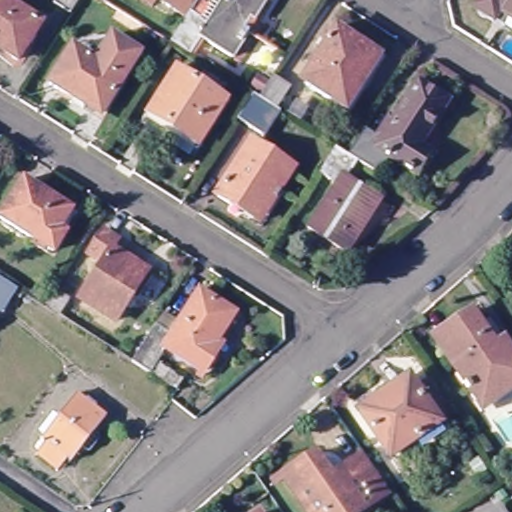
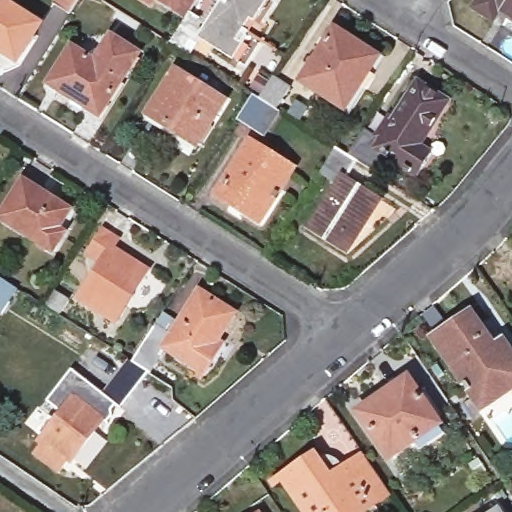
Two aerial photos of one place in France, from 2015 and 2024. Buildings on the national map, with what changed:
unchanged [(0,52),(0,0),(3,0),(39,22),(15,61),(0,52)]
unchanged [(76,0),(67,13),(52,4),(55,0),(76,0)]
unchanged [(199,39),(189,56),(168,42),(187,12),(168,0),(268,0),(230,59),(199,39)]
unchanged [(474,0),(512,0),(512,26),(500,18),(493,14),(473,1),(474,0)]
unchanged [(348,111),(344,109),(306,85),(295,77),(320,37),(325,41),(333,27),(378,56),(382,59),(348,111)]
unchanged [(96,115),(46,84),(70,46),(93,60),(109,36),(136,53),(96,115)]
unchanged [(195,145),(146,114),(175,69),(224,101),(195,145)]
unchanged [(266,130),(240,114),(256,90),(261,93),(275,72),(293,84),(280,105),(281,106),(266,130)]
unchanged [(450,109),(422,152),(435,160),(422,182),(394,164),(383,182),(360,167),(348,159),(365,133),(373,139),(390,113),(400,120),(420,90),(450,109)]
unchanged [(235,210),(219,201),(254,146),(294,172),(265,220),(260,226),(235,210)]
unchanged [(375,217),(349,258),(310,234),(339,189),(322,178),(338,152),(348,159),(360,167),(350,183),(374,198),(384,205),(375,217)]
unchanged [(61,231),(50,249),(1,218),(25,182),(68,208),(74,212),(61,231)]
unchanged [(76,302),(97,268),(83,260),(95,241),(110,250),(105,260),(128,274),(141,282),(137,290),(115,326),(76,302)]
unchanged [(0,307),(0,273),(17,283),(1,308),(0,307)]
unchanged [(66,300),(56,313),(45,306),(53,292),(66,300)]
unchanged [(132,367),(155,333),(162,321),(181,331),(202,299),(236,320),(214,355),(220,358),(210,375),(169,350),(148,380),(145,378),(126,402),(124,400),(109,387),(127,364),(132,367)]
unchanged [(478,412),(474,407),(430,341),(467,316),(490,348),(499,342),(508,355),(512,361),(512,388),(506,392),(507,392),(478,412)]
unchanged [(163,369),(180,380),(172,393),(155,382),(163,369)]
unchanged [(437,426),(389,458),(357,412),(405,378),(437,426)]
unchanged [(95,431),(106,438),(95,455),(82,448),(72,463),(67,461),(59,473),(37,458),(47,445),(42,441),(75,393),(105,416),(95,431)]
unchanged [(380,512),(311,512),(307,507),(302,510),(287,487),(320,465),(328,476),(334,472),(340,482),(368,464),(394,502),(380,512)]

